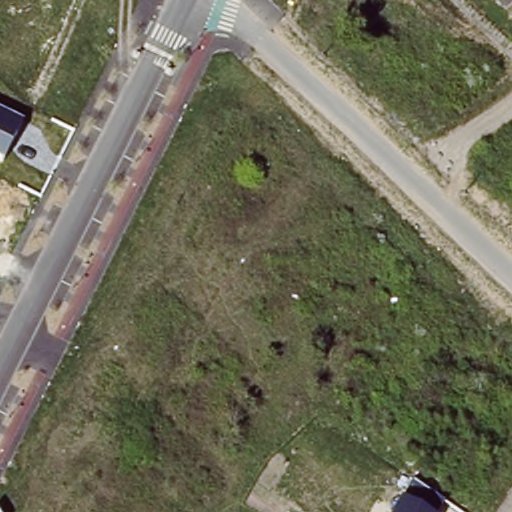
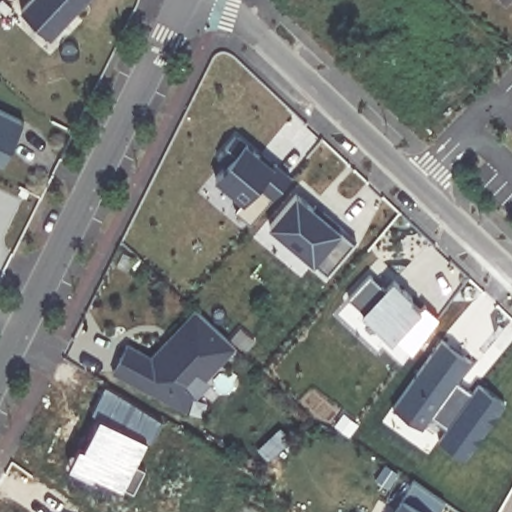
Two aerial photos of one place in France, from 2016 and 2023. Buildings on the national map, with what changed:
new [(28,0),(81,0),(49,33),(21,7),(28,0)]
unchanged [(24,120),(3,163),(0,162),(0,109),(24,120)]
new [(251,223),(235,209),(242,201),(214,177),(226,164),(217,156),(237,132),(245,140),(260,153),(263,150),(290,174),(251,223)]
new [(327,273),(314,261),(313,262),(269,225),(295,191),(313,207),(316,203),(356,237),(327,273)]
new [(412,353),(395,336),(392,341),(360,312),(363,309),(349,298),(370,273),(385,286),(393,278),(411,296),(410,297),(420,307),(424,302),(438,316),(412,353)]
new [(206,378),(196,370),(184,384),(194,393),(184,410),(112,371),(127,341),(150,353),(194,307),(235,345),(206,378)]
new [(466,458),(439,439),(448,425),(431,414),(423,427),(393,406),(441,337),(474,360),(459,380),(473,389),(479,381),(507,403),(466,458)]
new [(164,419),(153,441),(147,439),(135,462),(146,468),(134,491),(76,462),(100,415),(93,411),(106,384),(164,419)]
new [(282,428),(292,440),(281,450),(270,459),(260,448),(271,439),(282,428)]
unchanged [(447,501),(440,512),(393,512),(413,478),(447,501)]

